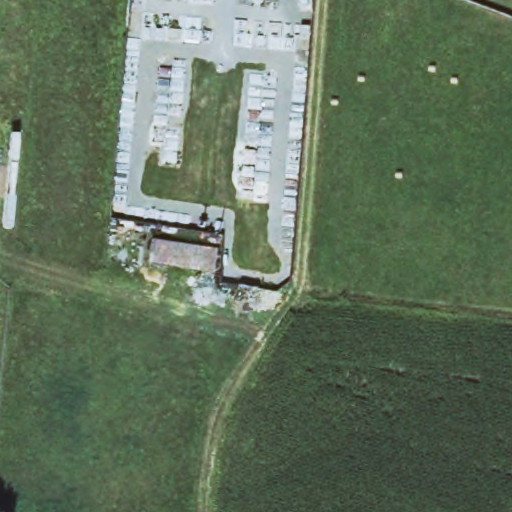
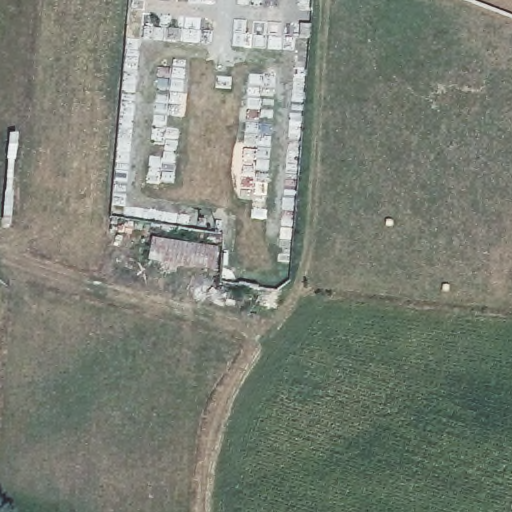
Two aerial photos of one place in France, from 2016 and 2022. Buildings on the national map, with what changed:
unchanged [(217,269),(151,260),(154,238),(217,245),(217,269)]

